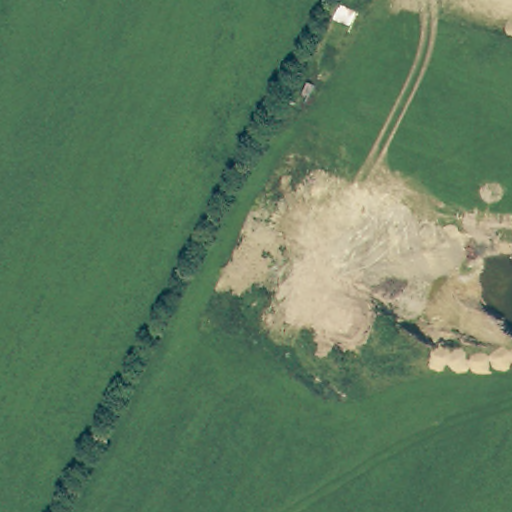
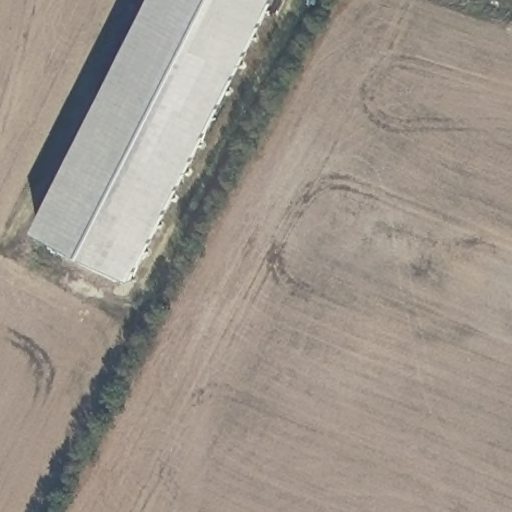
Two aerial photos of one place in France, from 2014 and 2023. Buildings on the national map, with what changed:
new [(36,232),(153,0),(275,0),(134,282),(36,232)]

